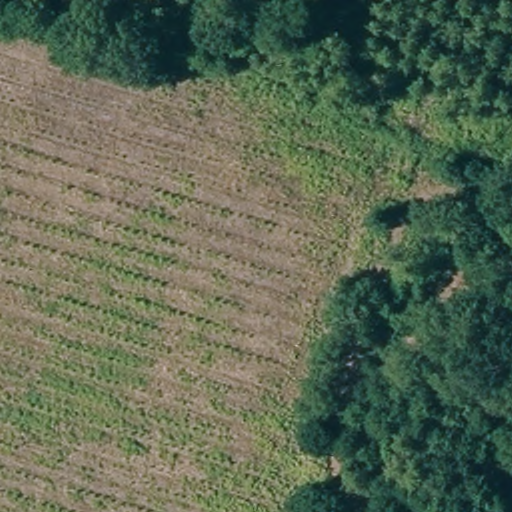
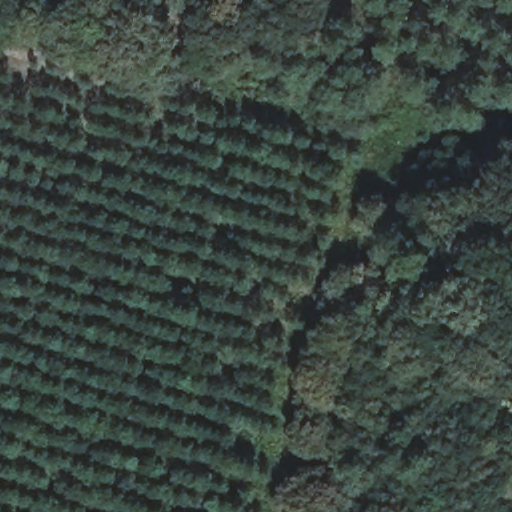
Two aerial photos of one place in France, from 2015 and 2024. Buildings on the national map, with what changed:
[]

